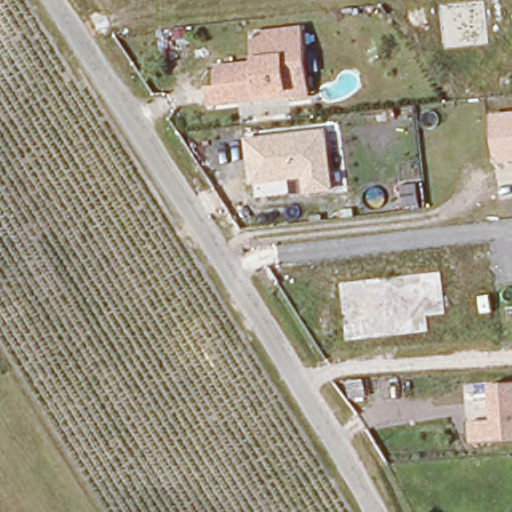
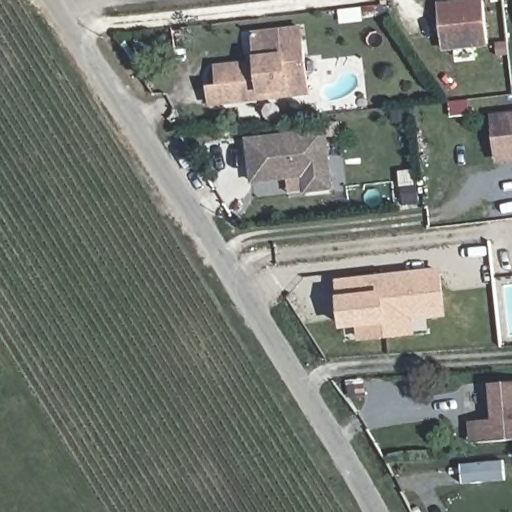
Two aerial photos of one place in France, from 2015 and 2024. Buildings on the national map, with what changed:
new [(438,4),(474,0),(484,0),(490,46),(443,51),(438,4)]
unchanged [(303,27),(311,96),(261,101),(209,107),(206,85),(217,83),(215,66),(255,62),(254,57),(252,32),(303,27)]
unchanged [(495,118),(512,116),(512,164),(499,166),(495,118)]
unchanged [(335,190),(305,193),(302,178),(252,184),(248,139),(327,130),(335,190)]
new [(342,325),(337,282),(437,270),(442,312),(423,315),(425,330),(359,337),(343,339),(342,325)]
unchanged [(492,385),(512,384),(512,440),(472,443),(470,422),(492,420),(492,385)]

